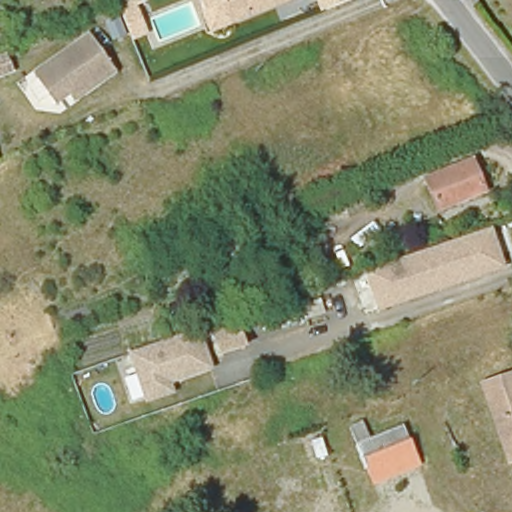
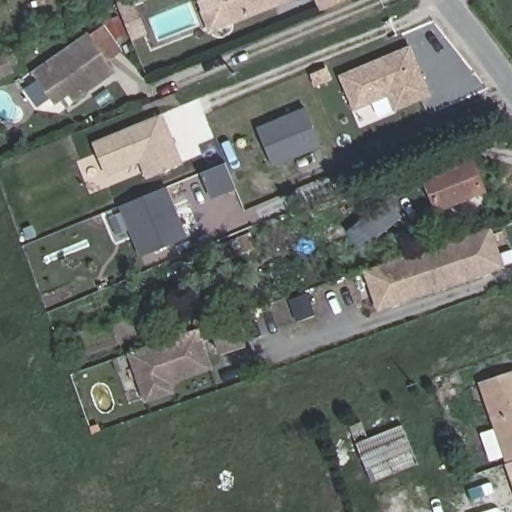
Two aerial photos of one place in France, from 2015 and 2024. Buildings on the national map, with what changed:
new [(135,41),(122,13),(119,6),(135,0),(145,0),(146,3),(137,7),(149,35),(135,41)]
unchanged [(226,4),(233,22),(208,33),(192,0),(224,0),(226,4)]
unchanged [(233,22),(226,4),(224,0),(288,0),(233,22)]
unchanged [(324,8),(320,0),(344,0),(324,8)]
unchanged [(55,98),(39,75),(93,38),(117,74),(78,103),(73,96),(59,105),(55,98)]
new [(412,48),(433,96),(398,111),(392,96),(358,111),(343,78),(412,48)]
new [(308,110),(324,146),(276,167),(260,130),(308,110)]
new [(165,116),(185,165),(154,178),(147,161),(108,177),(95,146),(165,116)]
unchanged [(488,195),(437,211),(427,179),(478,163),(488,195)]
new [(168,188),(189,238),(145,256),(124,206),(168,188)]
unchanged [(377,311),(363,270),(493,228),(508,269),(377,311)]
unchanged [(241,345),(217,354),(213,339),(208,325),(231,317),(241,345)]
unchanged [(207,368),(165,382),(168,392),(144,400),(128,353),(193,330),(199,345),(207,368)]
unchanged [(485,386),(512,376),(512,442),(505,444),(485,386)]
unchanged [(422,467),(375,487),(363,459),(369,458),(362,441),(403,425),(422,467)]
unchanged [(512,442),(512,465),(505,444),(512,442)]
new [(512,484),(505,464),(511,462),(512,465),(512,484)]

